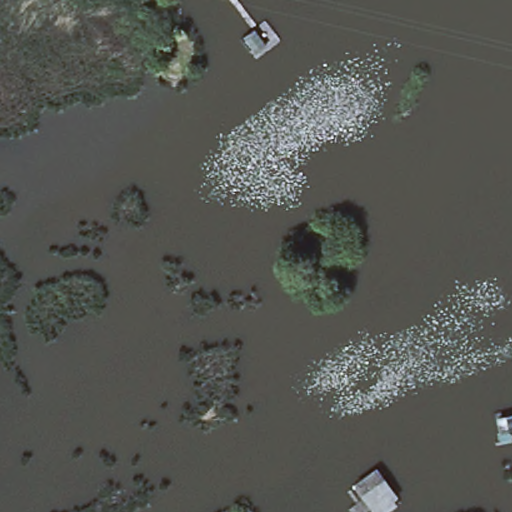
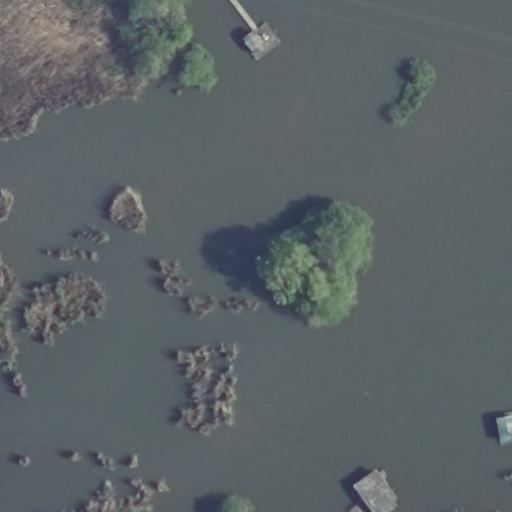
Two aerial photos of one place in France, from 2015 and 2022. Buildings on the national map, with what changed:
unchanged [(355,485),(377,471),(398,499),(395,503),(398,508),(392,512),(375,512),(355,485)]

